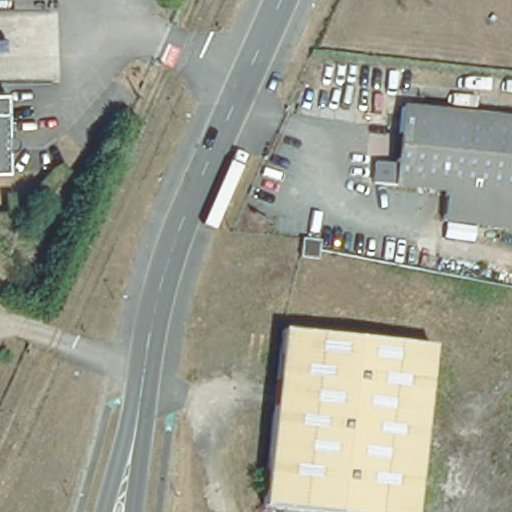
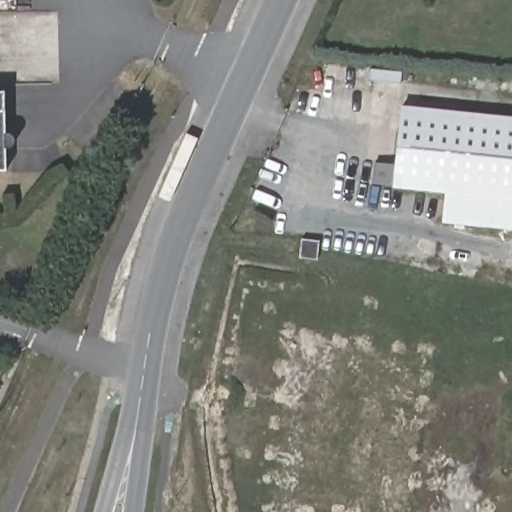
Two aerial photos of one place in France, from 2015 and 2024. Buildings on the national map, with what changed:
new [(4,92),(5,171),(0,172),(0,92),(4,92)]
unchanged [(512,236),(444,228),(447,201),(374,193),(376,171),(397,173),(402,115),(512,126),(512,236)]
unchanged [(296,257),(298,238),(318,240),(316,259),(296,257)]
demolished [(415,512),(355,512),(266,503),(284,328),(433,345),(415,512)]

